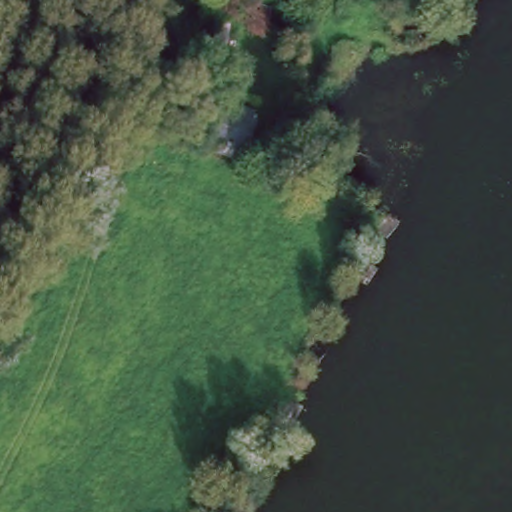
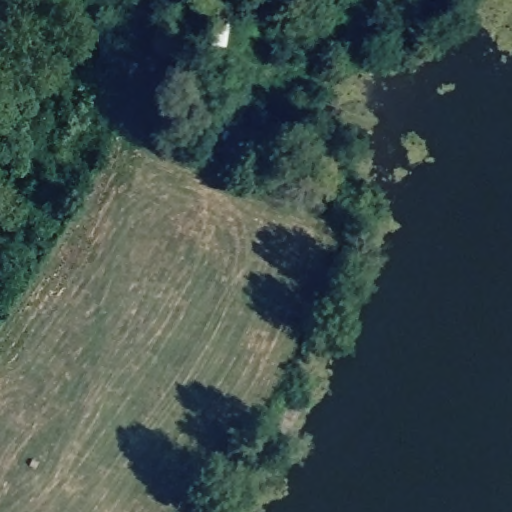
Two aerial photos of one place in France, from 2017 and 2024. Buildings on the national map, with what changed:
unchanged [(241,160),(186,145),(201,93),(256,110),(241,160)]

